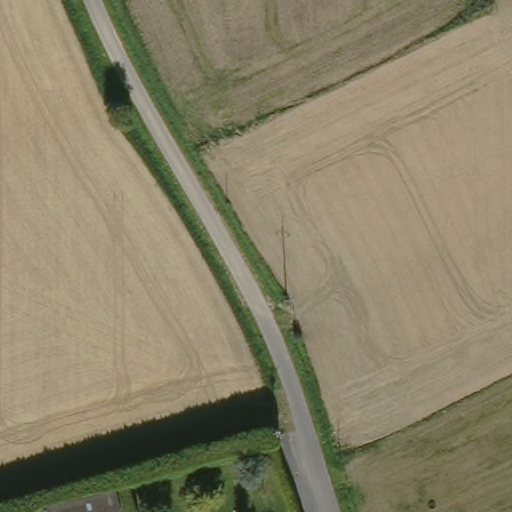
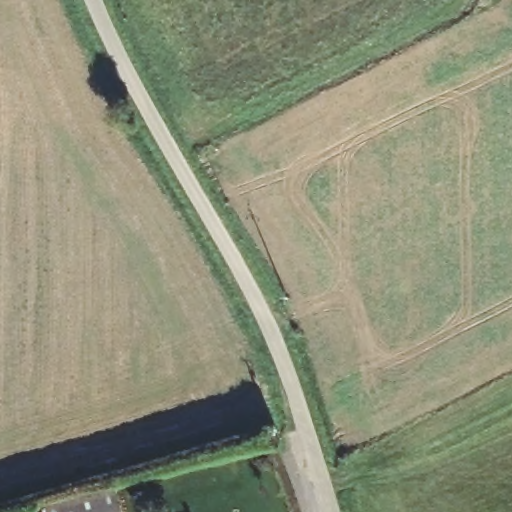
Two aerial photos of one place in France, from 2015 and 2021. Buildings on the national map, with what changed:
unchanged [(98,512),(49,512),(48,508),(121,490),(125,506),(98,512)]

